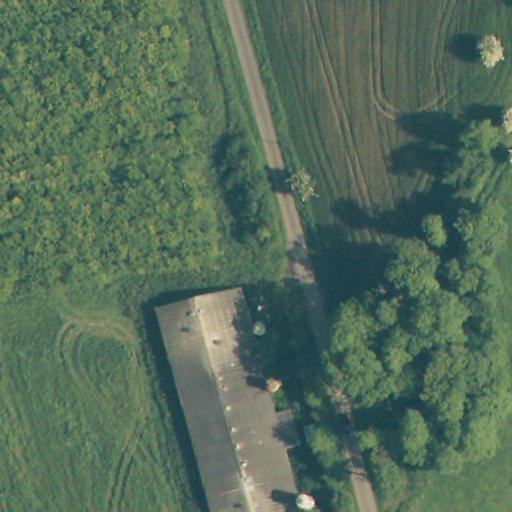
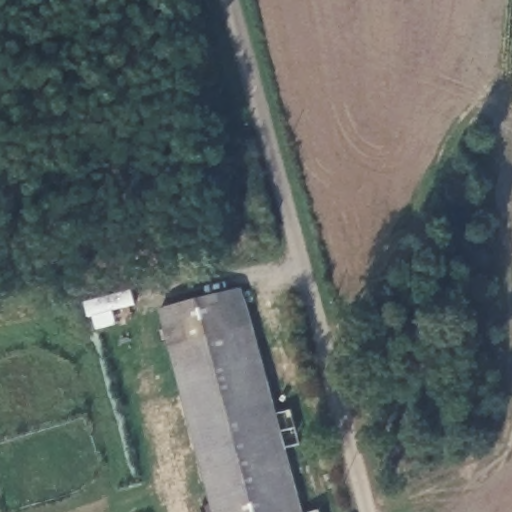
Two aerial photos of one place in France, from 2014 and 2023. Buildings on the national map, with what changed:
unchanged [(294,414),(303,450),(287,455),(302,512),(217,512),(163,316),(243,294),(277,419),(294,414)]

